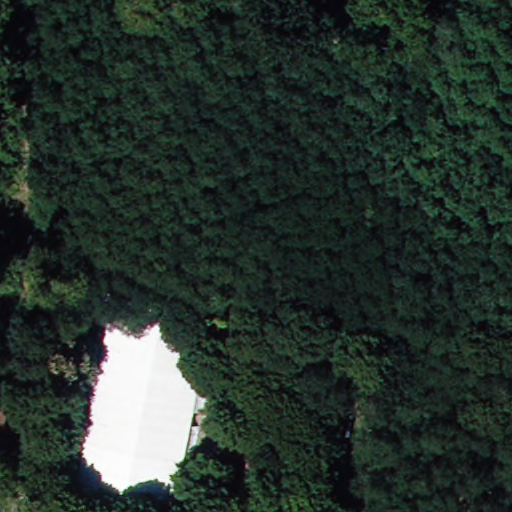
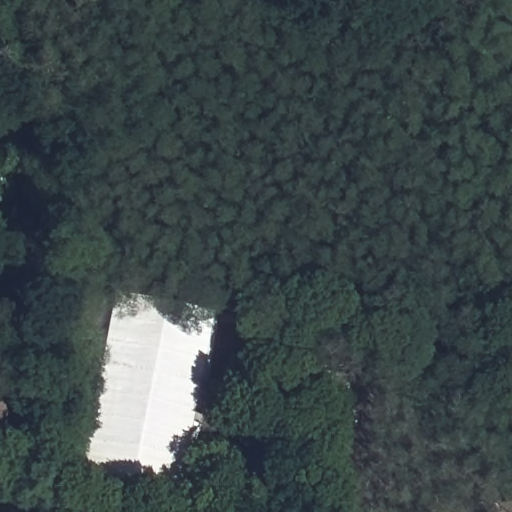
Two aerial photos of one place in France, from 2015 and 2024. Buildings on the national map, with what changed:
unchanged [(280,285),(298,289),(295,302),(277,300),(280,285)]
unchanged [(171,512),(130,512),(72,501),(107,306),(207,323),(189,421),(171,512)]
unchanged [(345,449),(293,443),(298,418),(347,425),(345,449)]
unchanged [(267,504),(245,500),(257,437),(277,440),(267,504)]

